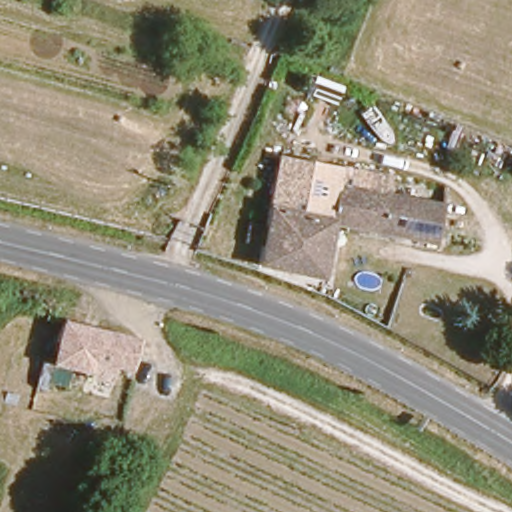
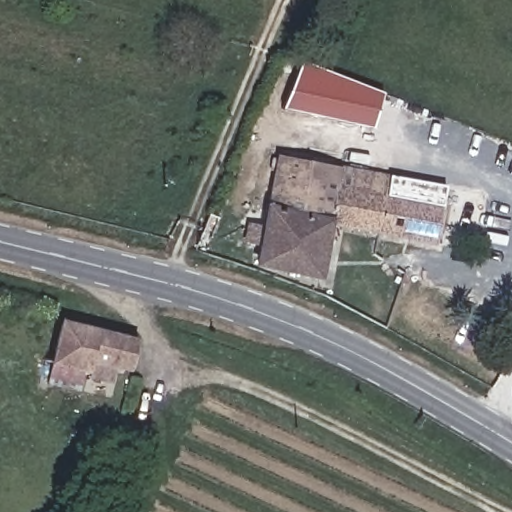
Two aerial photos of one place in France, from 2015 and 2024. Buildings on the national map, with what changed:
new [(382,92),(373,130),(285,110),(302,62),(382,92)]
unchanged [(340,158),(338,172),(450,192),(449,202),(438,206),(438,221),(447,221),(442,233),(434,231),(431,245),(421,243),(326,223),(316,278),(250,264),(270,159),(318,169),(322,155),(331,156),(340,158)]
unchanged [(92,362),(85,393),(41,385),(56,318),(135,337),(127,373),(92,362)]

